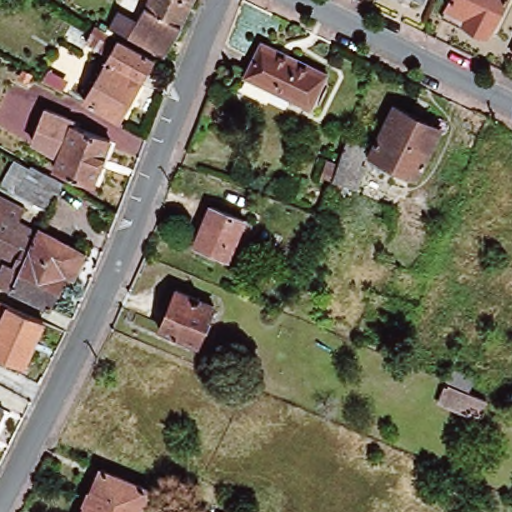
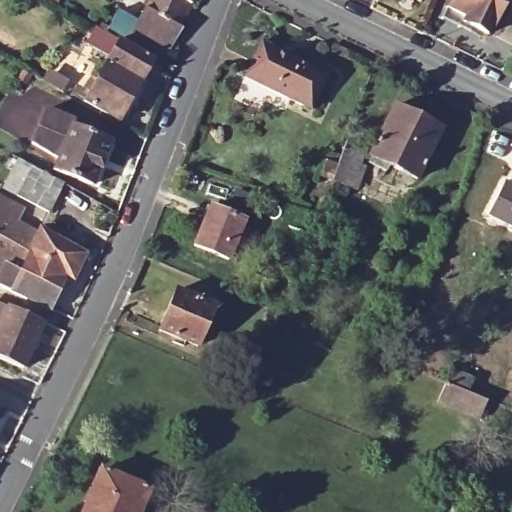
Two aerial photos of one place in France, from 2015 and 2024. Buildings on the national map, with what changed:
unchanged [(127,35),(148,0),(193,0),(180,28),(160,54),(127,35)]
unchanged [(420,2),(414,0),(421,0),(420,2)]
unchanged [(482,35),(441,14),(448,0),(500,0),(482,35)]
unchanged [(119,119),(84,100),(107,59),(84,46),(95,27),(152,59),(119,119)]
unchanged [(308,107),(243,76),(260,41),(325,73),(308,107)]
unchanged [(21,75),(25,66),(33,71),(30,80),(21,75)]
unchanged [(422,175),(376,153),(399,105),(445,127),(422,175)]
unchanged [(95,182),(56,169),(32,141),(47,108),(67,116),(74,119),(72,125),(111,140),(95,182)]
unchanged [(345,165),(353,140),(372,148),(355,186),(339,180),(327,175),(332,161),(345,165)]
unchanged [(12,161),(67,186),(55,211),(0,187),(12,161)]
new [(512,184),(512,227),(487,215),(505,180),(512,184)]
unchanged [(34,227),(78,247),(67,270),(61,266),(45,302),(10,287),(14,279),(7,275),(12,266),(0,260),(0,199),(12,205),(5,218),(32,230),(34,227)]
unchanged [(198,231),(208,207),(243,222),(232,246),(227,260),(192,245),(198,231)]
unchanged [(199,348),(162,331),(178,292),(216,310),(199,348)]
unchanged [(5,307),(40,322),(20,367),(10,362),(0,358),(0,305),(5,307)]
unchanged [(466,390),(443,381),(450,369),(471,379),(466,390)]
unchanged [(436,401),(443,383),(483,400),(477,417),(436,401)]
unchanged [(3,415),(0,421),(0,414),(3,415)]
unchanged [(148,493),(140,512),(82,512),(100,472),(148,493)]

